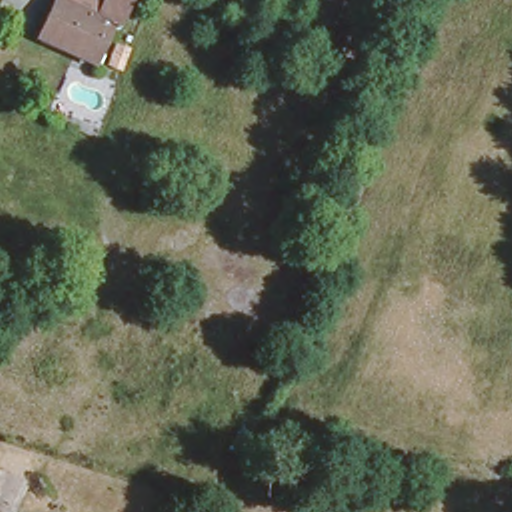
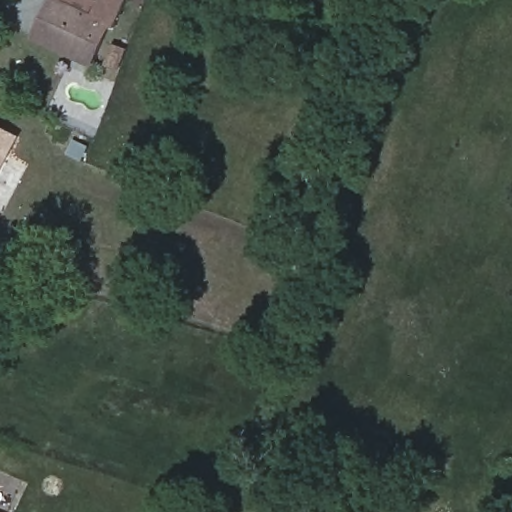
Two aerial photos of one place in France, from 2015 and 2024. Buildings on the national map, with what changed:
unchanged [(47,0),(93,0),(95,1),(96,0),(118,0),(114,10),(109,7),(94,50),(36,27),(47,0)]
new [(0,177),(0,128),(20,138),(0,177)]

